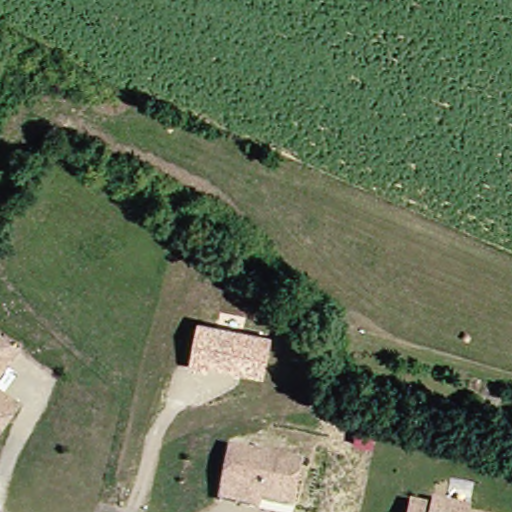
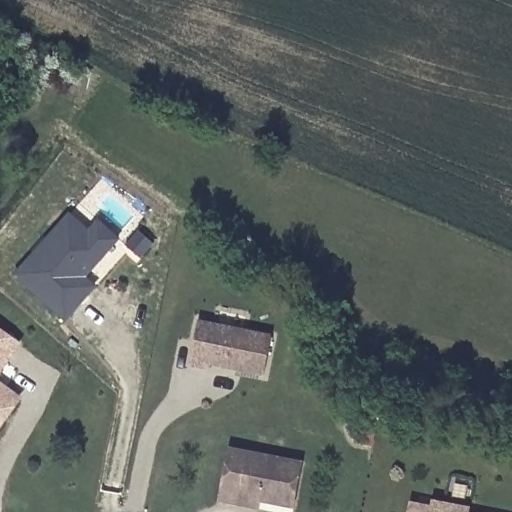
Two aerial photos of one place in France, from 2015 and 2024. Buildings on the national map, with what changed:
new [(80,307),(68,321),(18,277),(72,215),(91,232),(100,222),(121,241),(112,251),(87,278),(98,287),(80,307)]
unchanged [(265,377),(212,366),(210,371),(191,367),(200,320),(273,333),(265,377)]
unchanged [(20,343),(0,368),(0,328),(20,343)]
unchanged [(18,397),(0,420),(0,383),(18,397)]
unchanged [(240,506),(221,503),(229,457),(232,447),(252,452),(303,463),(296,510),(262,503),(261,510),(240,506)]
unchanged [(412,510),(421,512),(411,512),(412,510)]
unchanged [(433,510),(452,512),(432,512),(433,510)]

